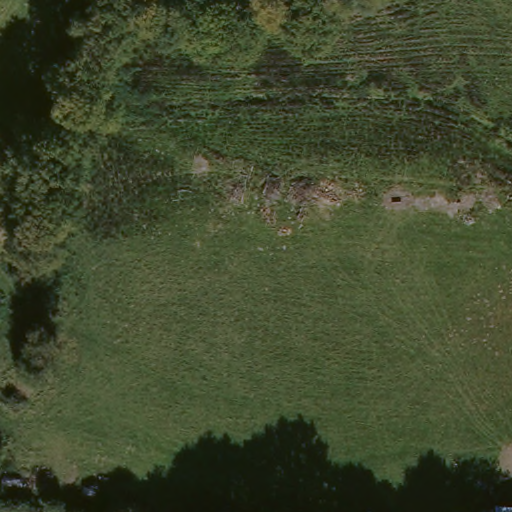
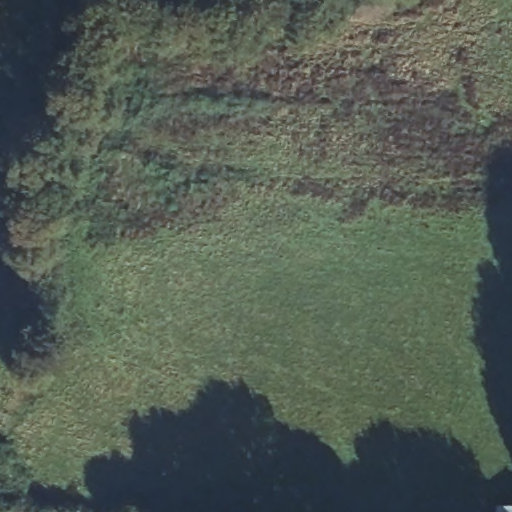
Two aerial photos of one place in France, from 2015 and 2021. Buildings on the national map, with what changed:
unchanged [(512,507),(512,512),(507,512),(507,507),(512,507)]

